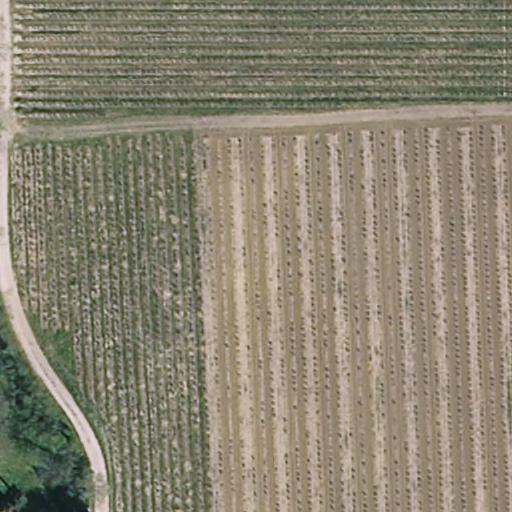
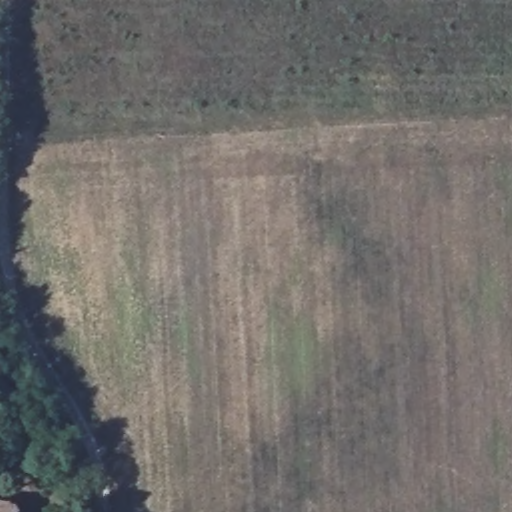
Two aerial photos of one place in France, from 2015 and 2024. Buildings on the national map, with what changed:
unchanged [(25,512),(0,512),(0,504),(25,507),(25,512)]

